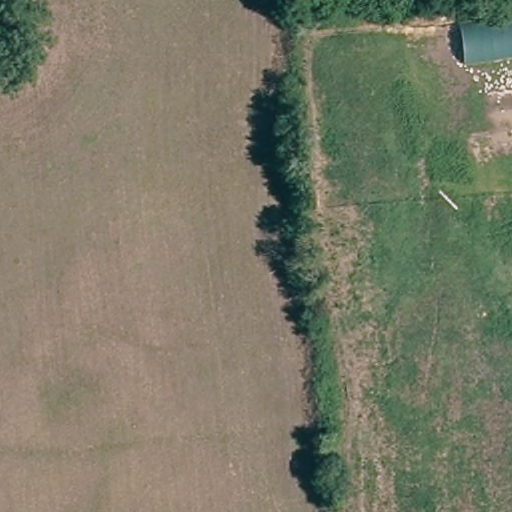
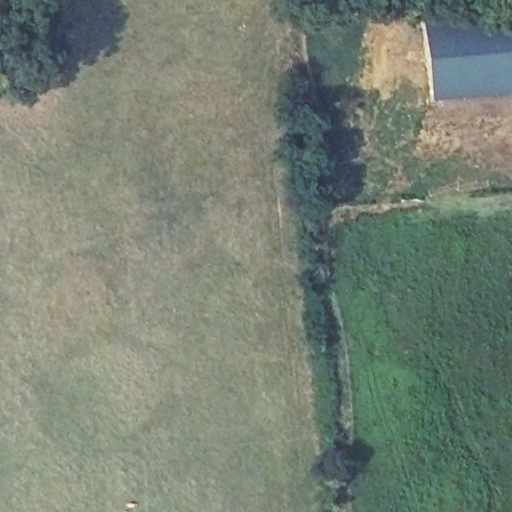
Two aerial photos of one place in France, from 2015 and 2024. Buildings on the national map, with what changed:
new [(423,18),(512,10),(512,94),(429,101),(423,18)]
demolished [(457,21),(512,13),(512,53),(463,61),(457,21)]

